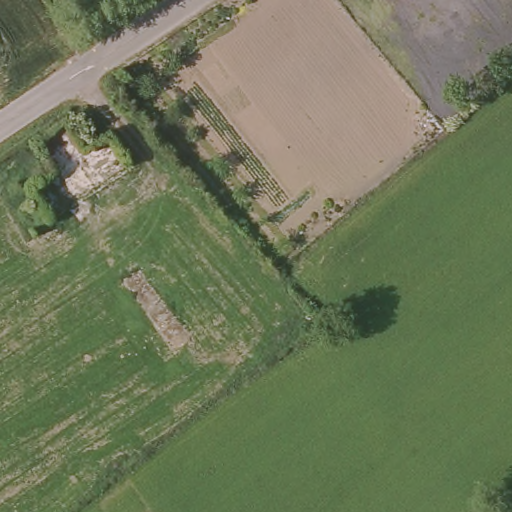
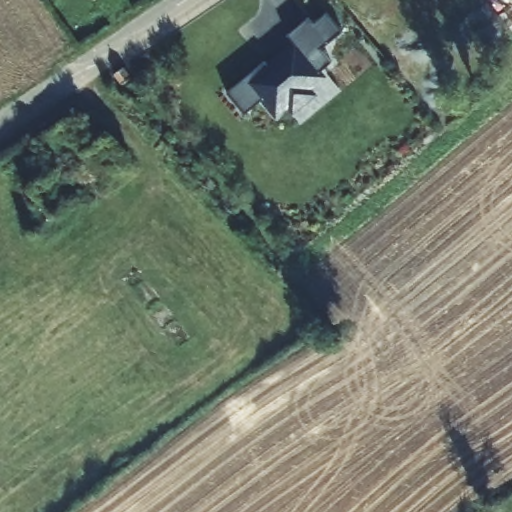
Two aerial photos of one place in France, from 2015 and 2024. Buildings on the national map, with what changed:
new [(342,32),(320,50),(332,64),(323,71),(328,77),(314,89),(318,95),(294,114),(291,110),(278,119),(264,100),(246,114),(229,93),(266,63),(268,65),(296,43),(290,35),(309,19),(314,25),(329,14),(342,32)]
unchanged [(141,81),(127,93),(118,80),(131,70),(141,81)]

